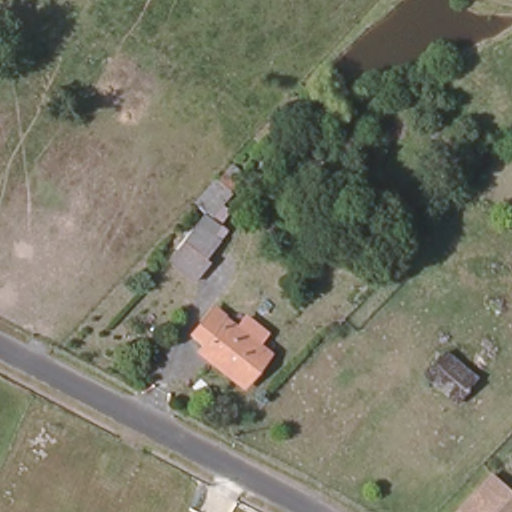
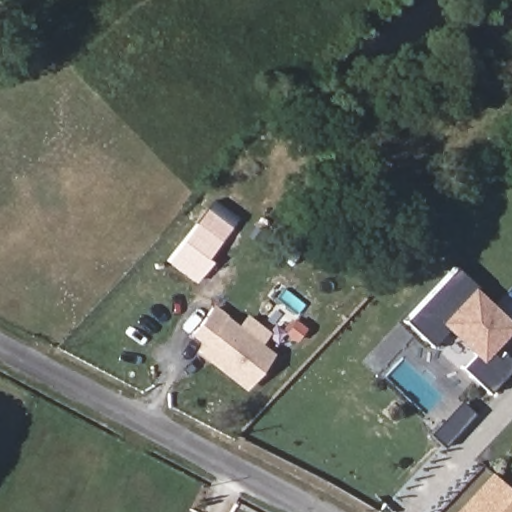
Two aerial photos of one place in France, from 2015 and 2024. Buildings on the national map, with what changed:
unchanged [(164,260),(199,213),(190,202),(231,162),(246,177),(223,204),(233,214),(220,226),(230,233),(198,281),(164,260)]
new [(447,331),(431,345),(405,320),(454,268),(512,323),(512,329),(490,351),(496,357),(501,352),(512,362),(512,366),(489,390),(463,365),(473,355),(447,331)]
unchanged [(212,342),(199,330),(215,310),(271,353),(247,386),(215,360),(204,351),(212,342)]
unchanged [(485,387),(465,409),(419,368),(438,345),(485,387)]
new [(459,403),(471,415),(442,446),(429,434),(459,403)]
unchanged [(512,498),(512,512),(461,512),(493,479),(512,498)]

